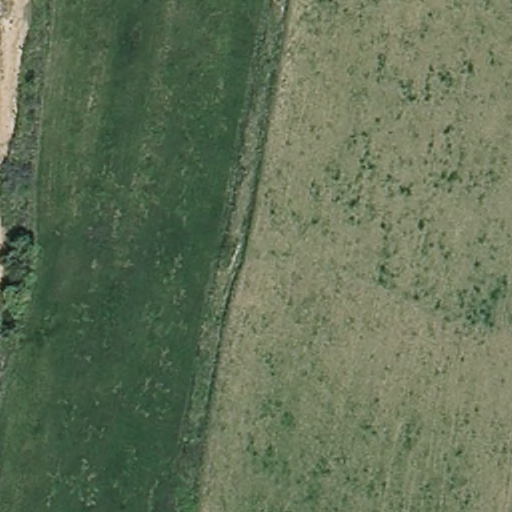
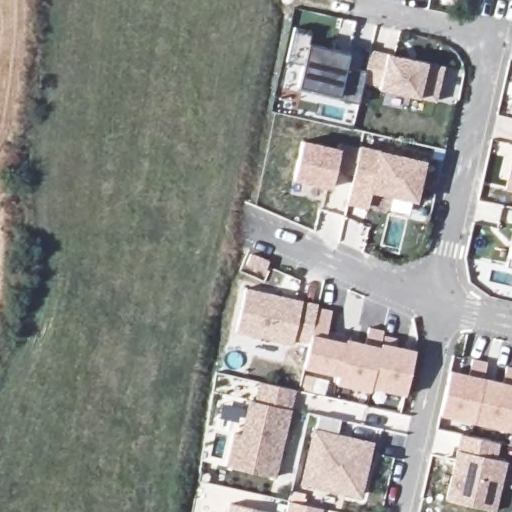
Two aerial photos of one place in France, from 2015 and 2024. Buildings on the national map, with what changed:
new [(312,32),(309,44),(350,54),(347,68),(365,71),(371,51),(388,54),(428,63),(445,67),(436,104),(420,99),(378,89),(379,87),(363,83),(359,104),(338,97),(297,87),(302,66),(287,62),(294,29),(312,32)]
new [(341,149),(341,143),(359,147),(359,146),(379,150),(426,161),(416,204),(373,194),(369,211),(346,205),(354,176),(336,171),(333,189),(294,182),(302,141),(341,149)]
new [(505,191),(512,156),(512,192),(505,191)]
new [(508,257),(512,239),(512,268),(507,267),(508,257)]
new [(302,301),(318,305),(317,309),(333,311),(328,332),(347,336),(346,340),(380,348),(381,342),(416,351),(405,396),(372,389),(371,393),(336,385),(338,377),(304,369),(309,345),(294,341),(293,345),(236,333),(245,290),(302,301)]
new [(469,375),(472,359),(488,363),(486,379),(503,382),(506,367),(512,368),(512,432),(439,416),(449,371),(469,375)]
new [(240,435),(248,400),(255,402),(260,382),(297,390),(276,479),(226,469),(233,434),(240,435)]
new [(316,430),(319,415),(340,420),(338,434),(374,442),(361,499),(299,486),(313,429),(316,430)]
new [(498,460),(507,462),(495,512),(493,512),(444,501),(459,435),(502,445),(498,460)]
new [(324,512),(286,512),(289,502),(324,510),(324,512)]
new [(226,512),(228,504),(267,512),(226,512)]

